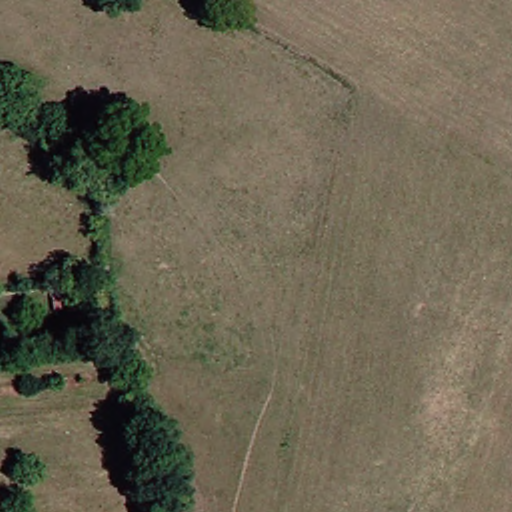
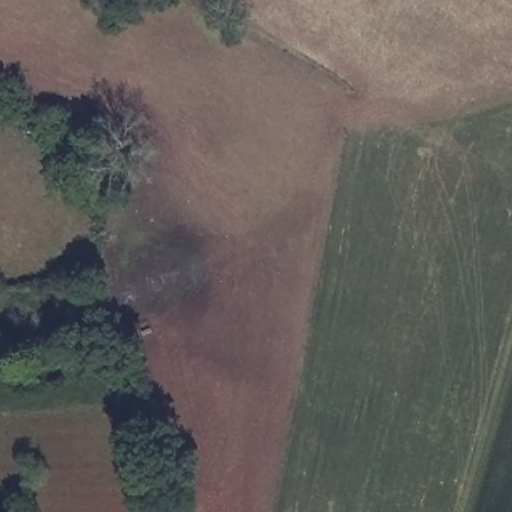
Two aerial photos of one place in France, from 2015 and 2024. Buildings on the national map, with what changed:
unchanged [(76,309),(65,315),(56,302),(66,295),(76,309)]

